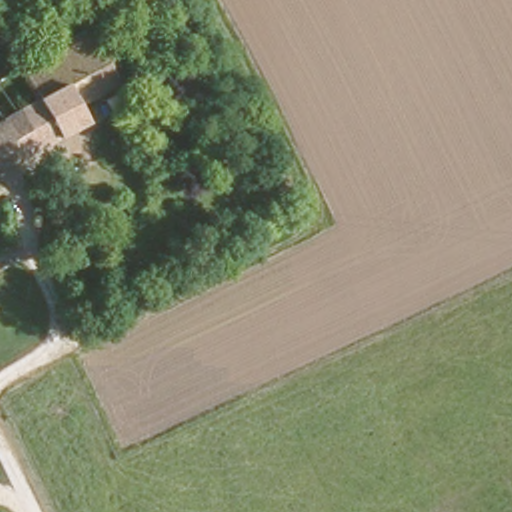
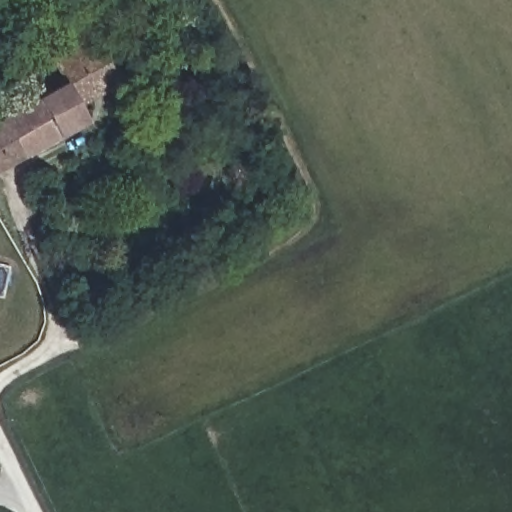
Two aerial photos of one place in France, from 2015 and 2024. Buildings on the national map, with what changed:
unchanged [(0,162),(0,79),(90,31),(117,85),(76,107),(82,120),(0,162)]

